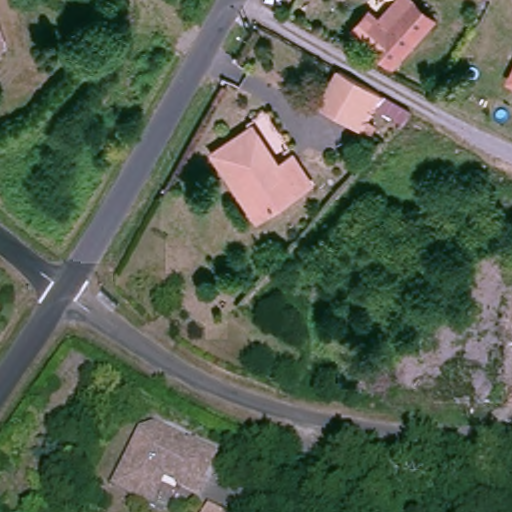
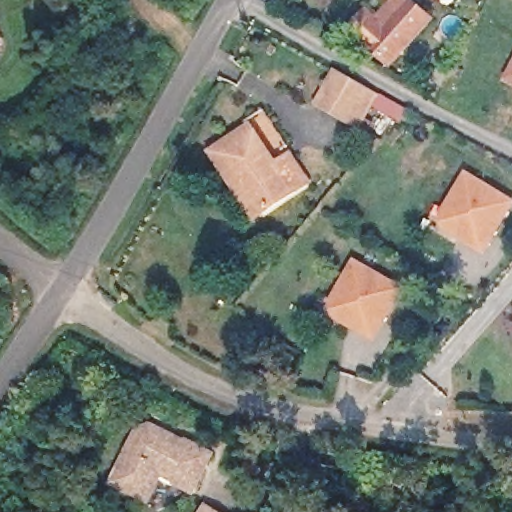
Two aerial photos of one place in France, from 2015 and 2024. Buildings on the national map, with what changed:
unchanged [(434,20),(392,66),(353,31),(370,12),(379,21),(398,0),(412,0),(434,20)]
unchanged [(0,44),(0,33),(3,43),(0,44)]
unchanged [(359,130),(319,109),(339,74),(380,96),(359,130)]
unchanged [(511,82),(512,81),(512,83),(511,82)]
unchanged [(229,181),(218,163),(211,151),(252,126),(260,139),(275,165),(293,155),(311,186),(267,214),(253,221),(229,181)]
new [(467,175),(512,203),(512,206),(484,253),(446,230),(443,216),(467,175)]
new [(357,262),(403,290),(373,339),(336,316),(332,303),(357,262)]
unchanged [(133,427),(155,424),(186,445),(195,435),(218,453),(188,494),(152,472),(141,491),(129,484),(122,492),(100,478),(133,427)]
unchanged [(204,512),(199,512),(201,510),(204,512)]

